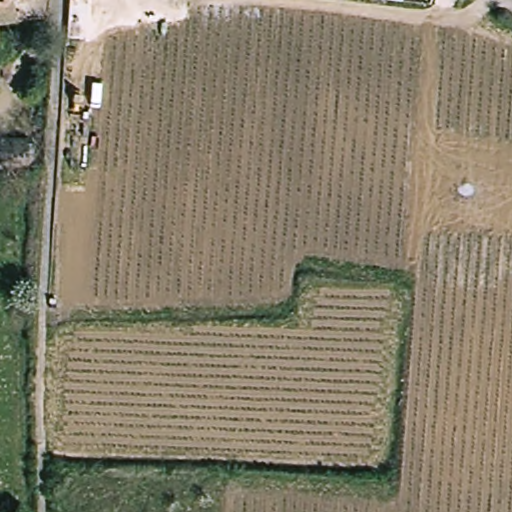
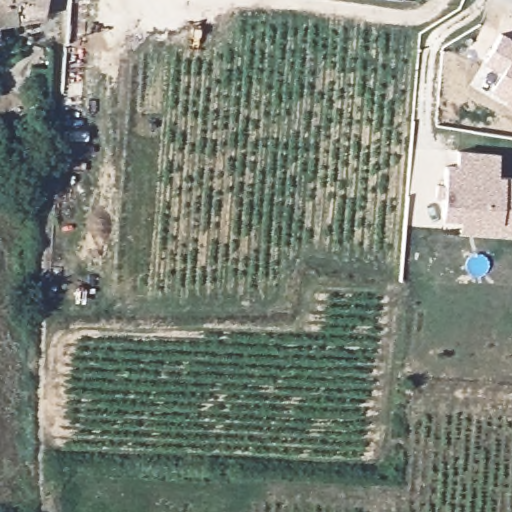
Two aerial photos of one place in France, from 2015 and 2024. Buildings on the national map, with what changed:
unchanged [(50,10),(4,18),(5,34),(0,35),(0,0),(52,0),(50,10)]
new [(488,89),(497,72),(482,63),(500,31),(512,39),(512,104),(488,89)]
new [(497,153),(495,175),(502,176),(512,177),(512,236),(460,232),(462,219),(440,218),(445,166),(456,166),(455,150),(497,153)]

